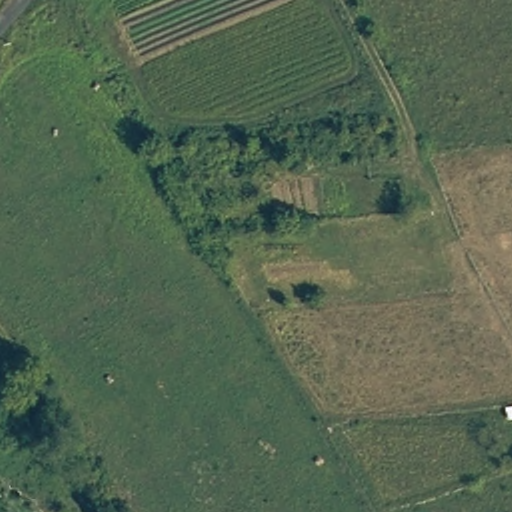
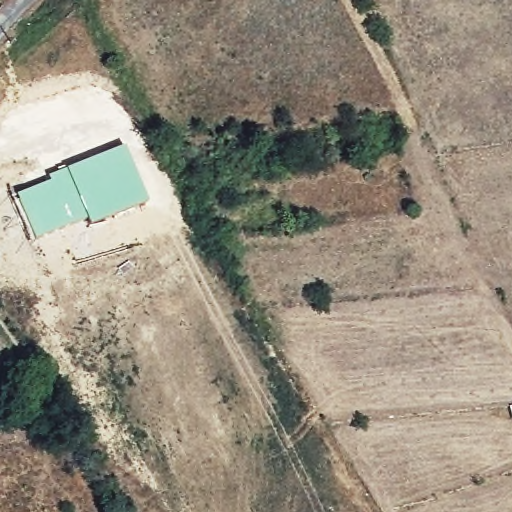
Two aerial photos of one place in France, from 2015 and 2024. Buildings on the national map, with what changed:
new [(49,178),(47,174),(125,143),(149,201),(89,226),(85,218),(34,239),(15,193),(49,178)]

